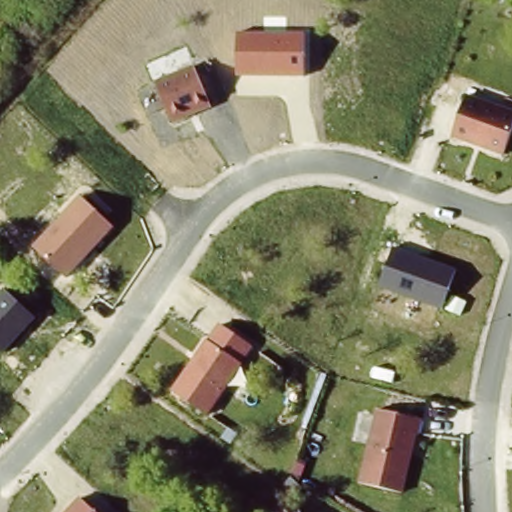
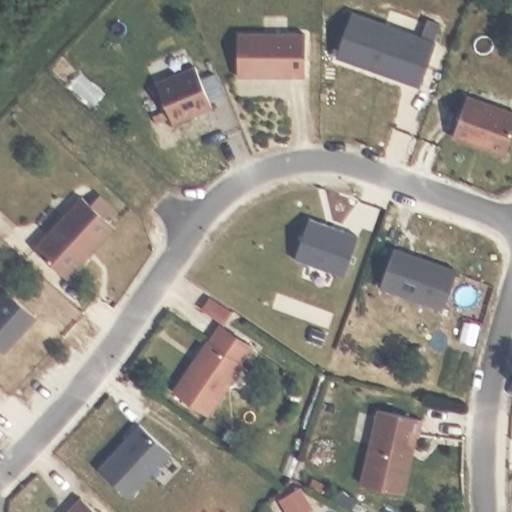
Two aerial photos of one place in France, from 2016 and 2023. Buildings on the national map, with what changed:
new [(420,85),(337,54),(352,12),(390,24),(395,10),(430,20),(423,36),(436,42),(420,85)]
unchanged [(306,33),(305,75),(239,74),(239,32),(306,33)]
unchanged [(214,108),(172,123),(152,79),(193,63),(214,108)]
unchanged [(467,94),(512,111),(512,137),(506,154),(452,135),(467,94)]
unchanged [(115,228),(68,278),(34,245),(80,196),(115,228)]
unchanged [(380,289),(393,247),(456,270),(442,310),(380,289)]
unchanged [(5,353),(0,349),(0,294),(4,290),(37,318),(5,353)]
unchanged [(252,346),(209,413),(174,392),(217,325),(252,346)]
unchanged [(360,479),(379,404),(425,415),(420,432),(418,431),(404,489),(360,479)]
new [(130,499),(97,469),(139,423),(172,453),(130,499)]
unchanged [(97,512),(63,512),(79,495),(97,512)]

